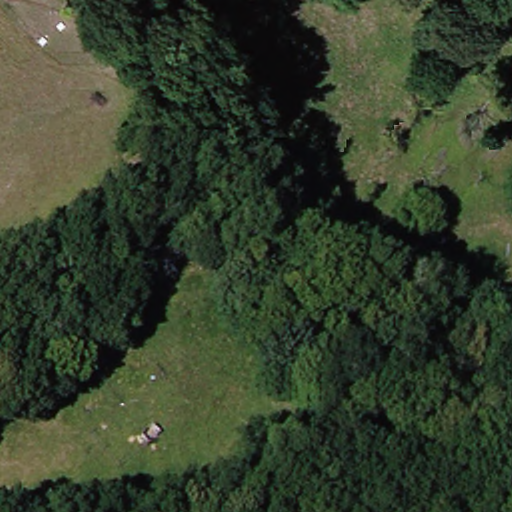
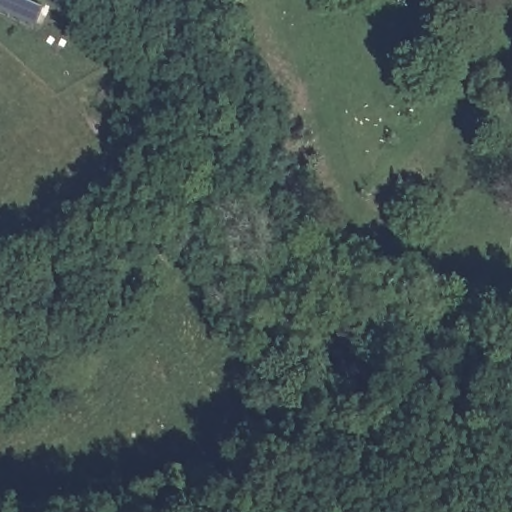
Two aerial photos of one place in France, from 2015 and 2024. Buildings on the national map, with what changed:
[]

